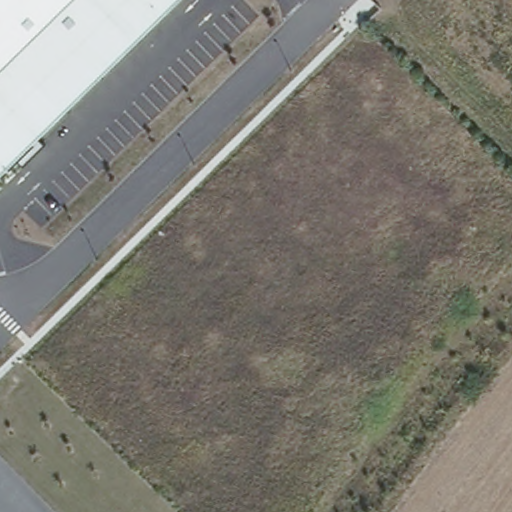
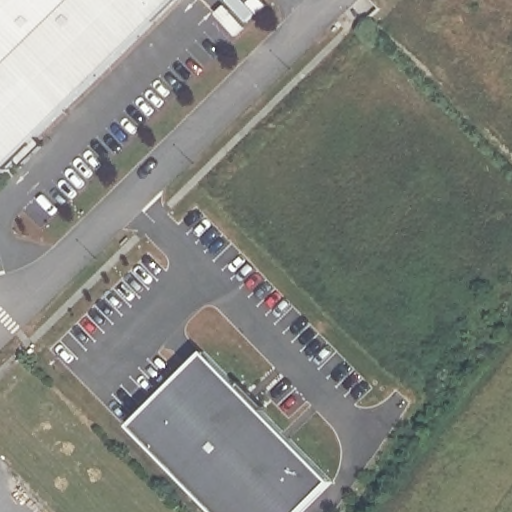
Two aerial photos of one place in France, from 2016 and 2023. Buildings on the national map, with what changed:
unchanged [(0,0),(180,0),(0,173),(0,0)]
new [(206,349),(335,475),(298,512),(214,512),(126,427),(206,349)]

